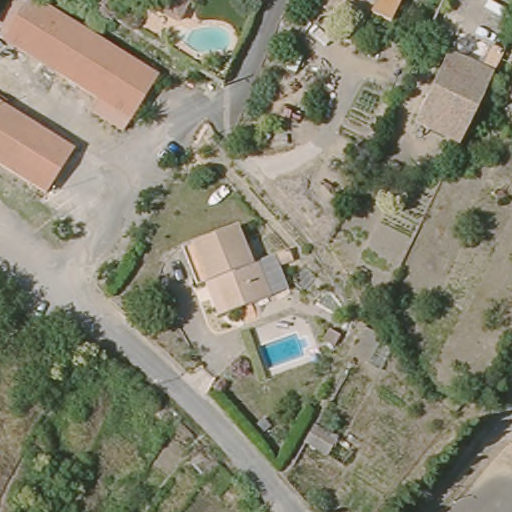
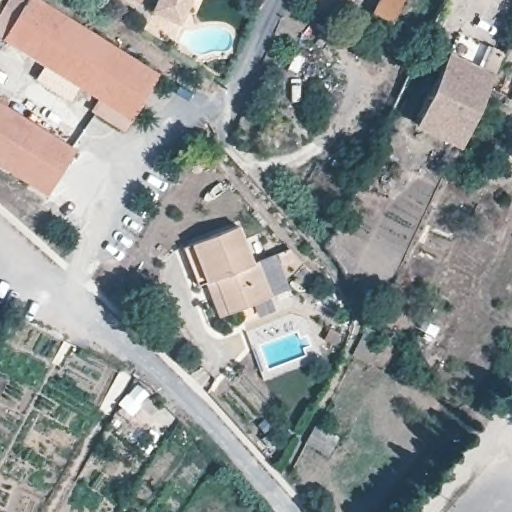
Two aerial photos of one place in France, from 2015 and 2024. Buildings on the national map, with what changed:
unchanged [(135,113),(45,57),(7,35),(28,0),(49,0),(120,42),(163,69),(135,113)]
unchanged [(164,0),(195,0),(187,21),(161,10),(164,0)]
unchanged [(375,11),(380,0),(403,0),(394,20),(375,11)]
unchanged [(456,16),(438,54),(423,47),(442,9),(456,16)]
unchanged [(497,68),(490,82),(455,157),(412,136),(452,49),(497,68)]
unchanged [(82,150),(54,194),(0,159),(0,98),(82,150)]
unchanged [(204,276),(195,278),(185,239),(194,237),(243,223),(253,262),(259,262),(267,297),(224,308),(214,312),(204,276)]
unchanged [(329,435),(318,457),(305,451),(318,427),(329,435)]

